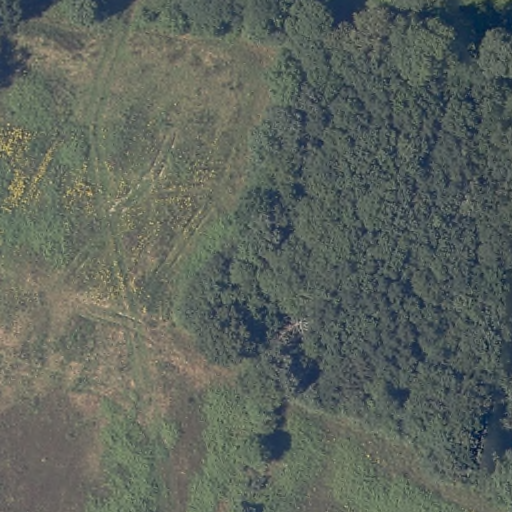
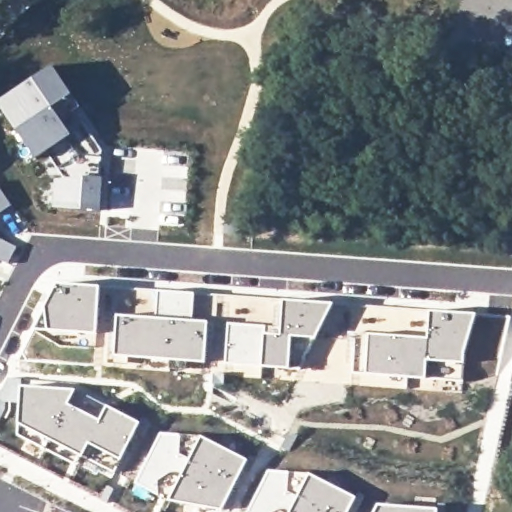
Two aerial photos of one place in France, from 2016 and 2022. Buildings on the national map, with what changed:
new [(55,206),(56,180),(65,179),(46,151),(37,157),(6,111),(1,100),(14,92),(53,66),(71,94),(60,101),(70,115),(78,125),(84,121),(101,149),(98,176),(105,177),(103,207),(55,206)]
new [(45,305),(58,282),(100,285),(95,331),(49,329),(35,329),(45,305)]
new [(197,292),(193,320),(209,321),(205,362),(187,361),(187,370),(171,368),(172,359),(128,356),(128,363),(109,362),(109,349),(115,350),(118,313),(156,316),(158,290),(197,292)]
new [(316,337),(301,368),(289,367),(263,365),(226,362),(230,323),(282,328),(284,300),(334,303),(316,337)]
new [(464,351),(464,361),(463,380),(425,377),(367,373),(353,372),(356,331),(370,332),(428,336),(431,308),(476,313),(464,351)]
new [(18,433),(19,422),(21,385),(76,389),(93,398),(108,405),(140,422),(121,458),(114,471),(83,455),(74,463),(18,433)]
new [(161,431),(203,435),(248,460),(222,508),(170,499),(136,481),(161,431)]
new [(310,472),(356,496),(348,512),(248,512),(268,469),(310,472)]
new [(438,508),(438,512),(374,512),(378,504),(438,508)]

